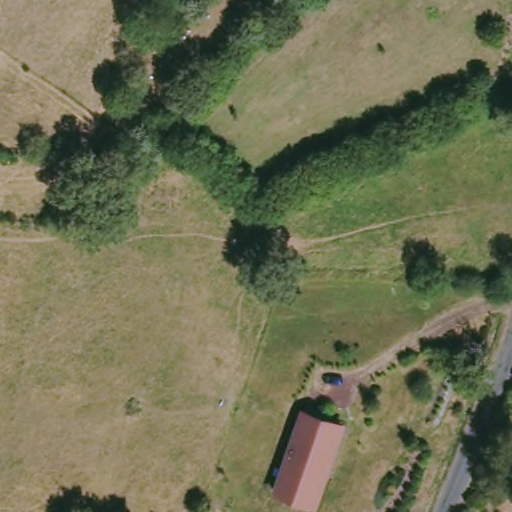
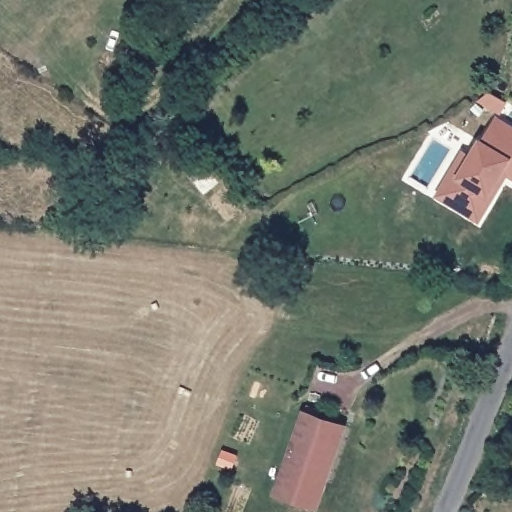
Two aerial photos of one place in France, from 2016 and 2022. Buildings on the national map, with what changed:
new [(479,222),(435,197),(460,149),(472,156),(481,141),(497,117),(512,126),(512,180),(502,174),(493,192),(497,195),(479,222)]
unchanged [(276,493),(304,413),(344,426),(316,507),(276,493)]

